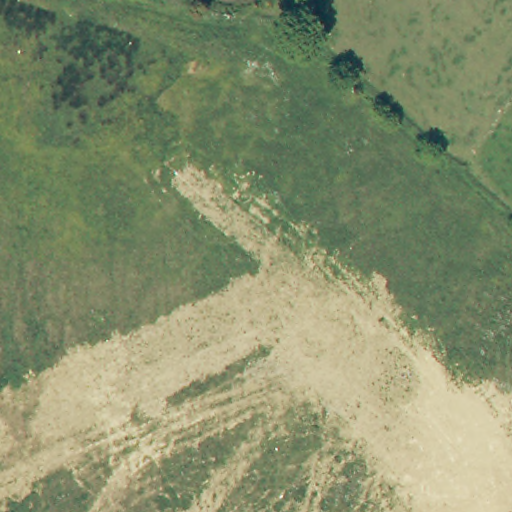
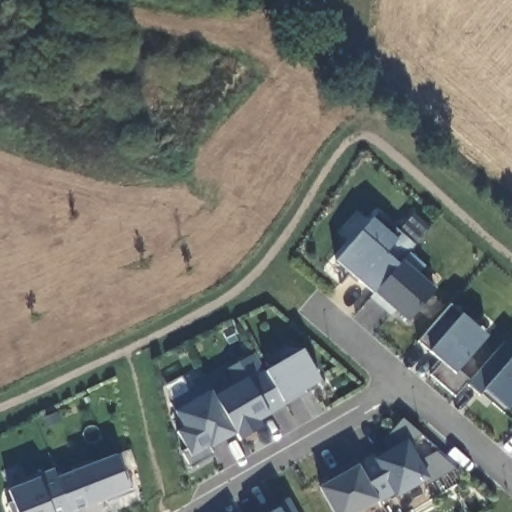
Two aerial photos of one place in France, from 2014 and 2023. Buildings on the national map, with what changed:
new [(372,221),(378,215),(397,232),(413,214),(430,230),(409,254),(423,265),(416,275),(435,291),(408,321),(389,305),(383,311),(369,299),(372,295),(334,263),(372,221)]
new [(458,312),(485,337),(458,369),(470,381),(504,340),(512,347),(512,406),(508,410),(503,414),(466,385),(456,398),(431,377),(442,365),(428,352),(417,343),(450,305),(458,312)]
new [(258,422),(262,429),(239,442),(212,395),(234,383),(226,370),(254,355),(263,372),(302,351),(319,382),(304,390),(307,395),(284,407),(268,416),(258,422)]
new [(356,467),(372,457),(388,450),(382,441),(402,421),(421,435),(408,442),(420,463),(438,451),(460,468),(428,485),(427,481),(396,499),(394,495),(377,503),(360,512),(332,512),(317,487),(356,467)]
new [(71,473),(115,457),(121,475),(126,474),(134,493),(106,503),(105,502),(87,510),(79,512),(69,512),(55,478),(71,473)]
new [(69,512),(9,512),(5,504),(10,502),(6,491),(26,483),(25,480),(52,470),(55,478),(69,512)]
new [(287,498),(296,512),(263,512),(287,498)]

